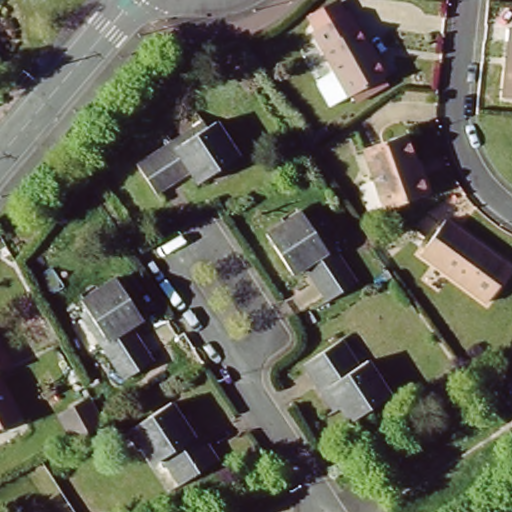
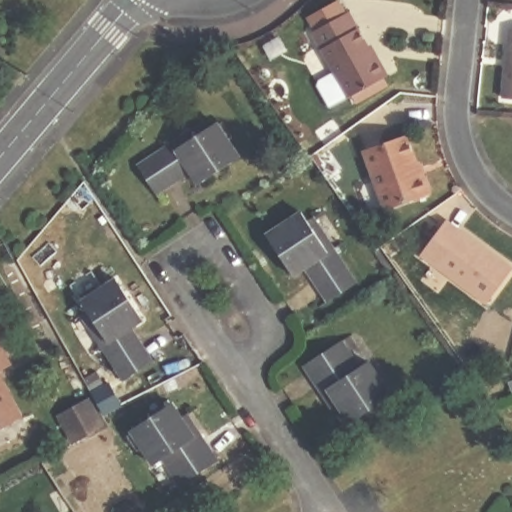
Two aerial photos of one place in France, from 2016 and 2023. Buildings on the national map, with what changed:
unchanged [(384,59),(387,56),(400,73),(362,99),(322,43),(355,19),(384,59)]
unchanged [(501,96),(512,31),(512,98),(501,96)]
unchanged [(238,161),(199,184),(192,173),(154,195),(134,163),(174,139),(204,121),(209,129),(216,124),(238,161)]
unchanged [(395,137),(416,175),(420,173),(431,194),(390,216),(358,157),(395,137)]
unchanged [(327,300),(305,266),(295,272),(269,233),(302,213),(310,224),(318,219),(334,243),(359,282),(327,300)]
unchanged [(444,219),(509,269),(481,305),(417,256),(444,219)]
unchanged [(143,367),(120,382),(94,340),(99,337),(75,300),(104,282),(127,319),(117,325),(143,367)]
unchanged [(0,341),(12,364),(0,370),(0,341)]
unchanged [(321,392),(306,364),(342,344),(355,368),(367,361),(387,399),(347,422),(332,395),(325,399),(321,392)]
unchanged [(0,427),(0,382),(19,417),(0,427)]
unchanged [(148,464),(127,431),(167,406),(177,421),(185,416),(195,431),(215,464),(175,489),(174,488),(155,459),(148,464)]

